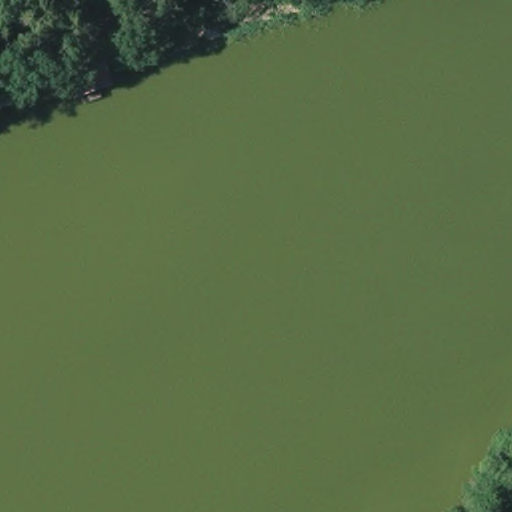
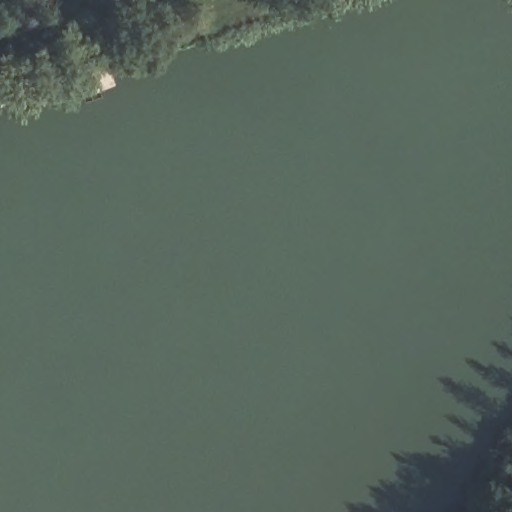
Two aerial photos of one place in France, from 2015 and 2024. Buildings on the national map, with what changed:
unchanged [(102,61),(107,80),(72,89),(67,70),(102,61)]

